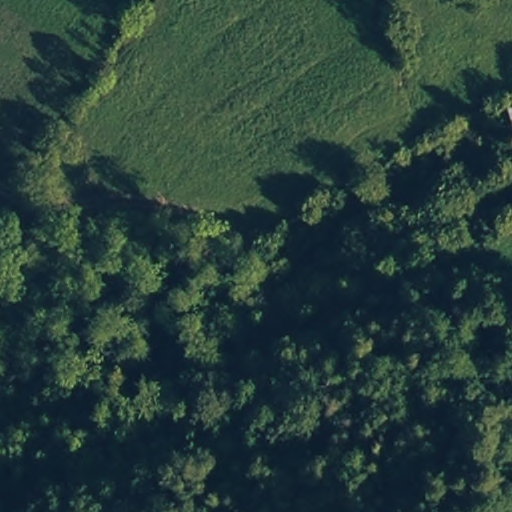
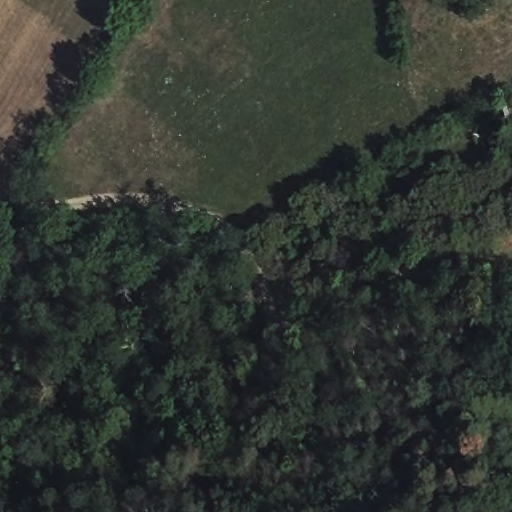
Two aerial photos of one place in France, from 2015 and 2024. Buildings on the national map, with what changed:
unchanged [(512,126),(509,126),(501,108),(512,106),(512,126)]

